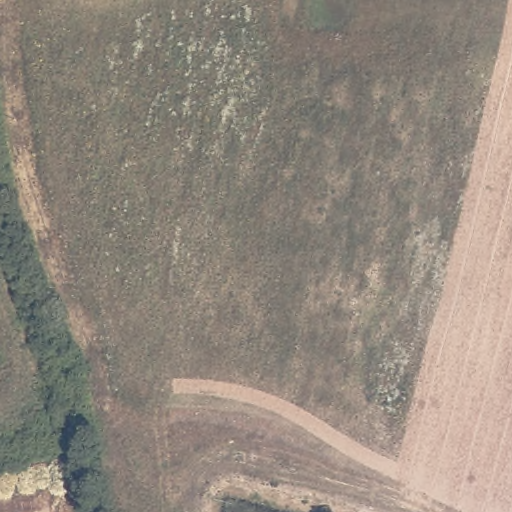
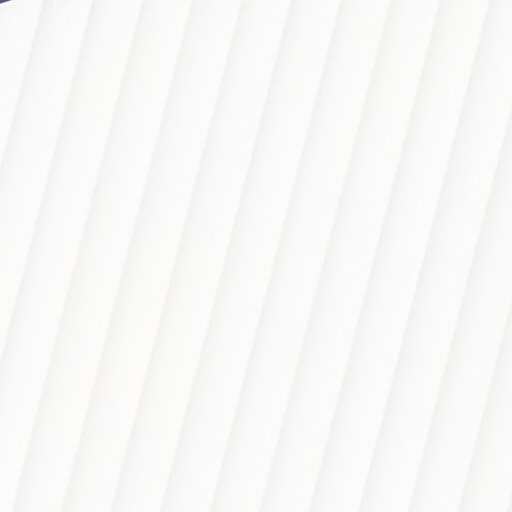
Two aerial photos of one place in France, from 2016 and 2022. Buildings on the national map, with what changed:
new [(31,0),(512,0),(512,512),(0,512),(0,7),(31,0)]

